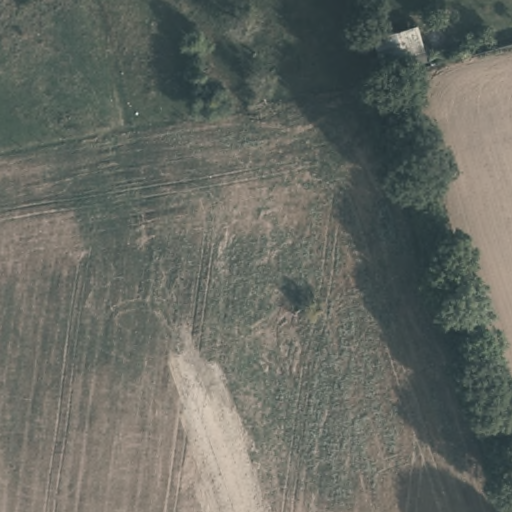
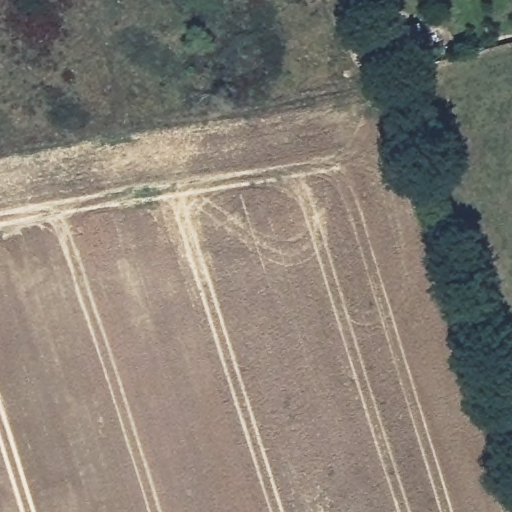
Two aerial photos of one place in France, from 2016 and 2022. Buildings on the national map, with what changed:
unchanged [(431,56),(384,69),(377,34),(421,23),(431,56)]

